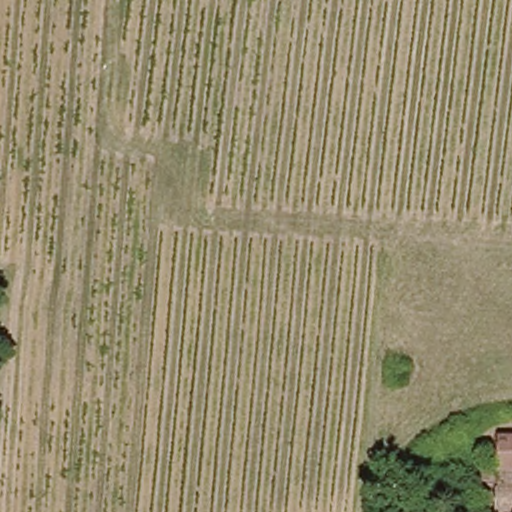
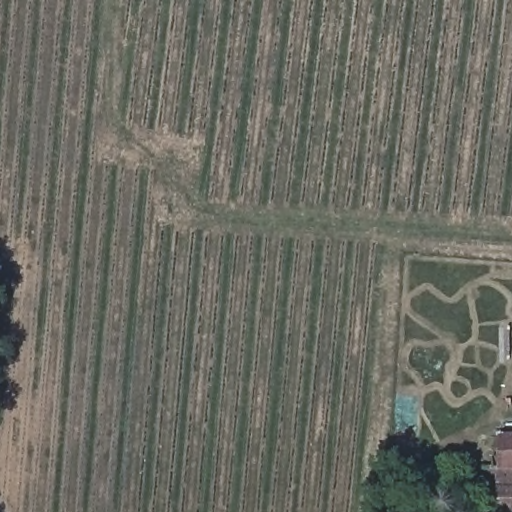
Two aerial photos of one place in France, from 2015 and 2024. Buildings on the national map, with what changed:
unchanged [(500,482),(482,482),(482,466),(500,466),(502,433),(512,434),(512,509),(498,509),(500,482)]

